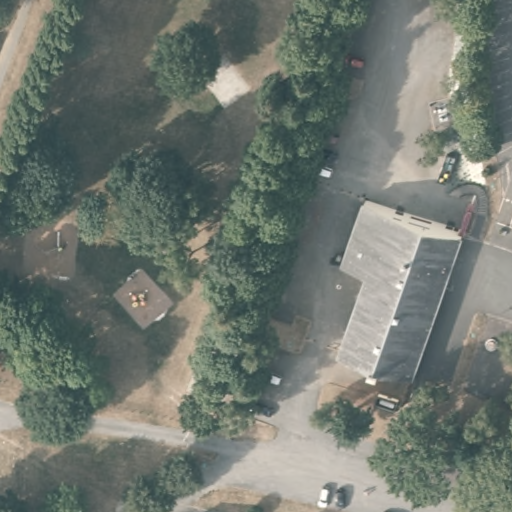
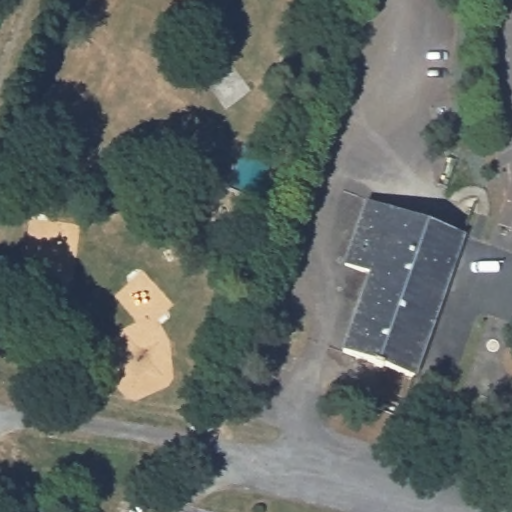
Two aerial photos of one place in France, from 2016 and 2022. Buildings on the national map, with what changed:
unchanged [(206,92),(193,79),(216,57),(243,85),(221,108),(206,92)]
unchanged [(264,120),(265,145),(245,149),(244,121),(264,120)]
unchanged [(417,372),(346,348),(373,272),(348,262),(371,199),(466,232),(417,372)]

